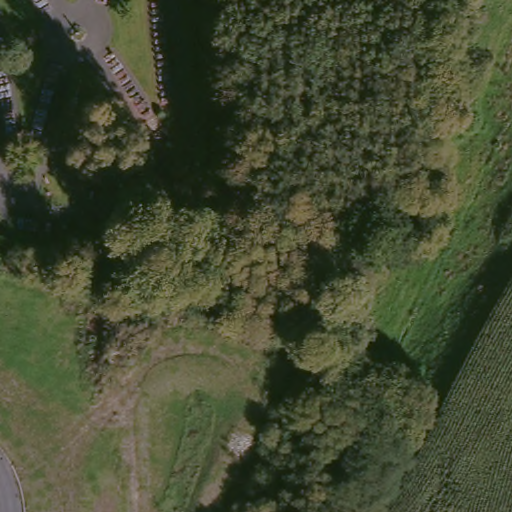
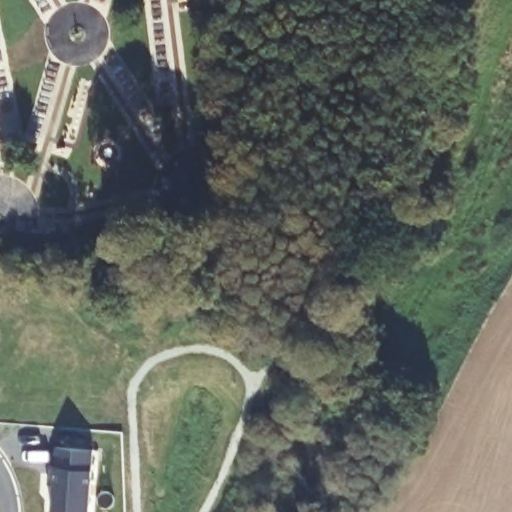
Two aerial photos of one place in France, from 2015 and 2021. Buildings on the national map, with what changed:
new [(46,468),(52,468),(54,448),(92,451),(89,512),(50,512),(51,486),(45,486),(46,468)]

